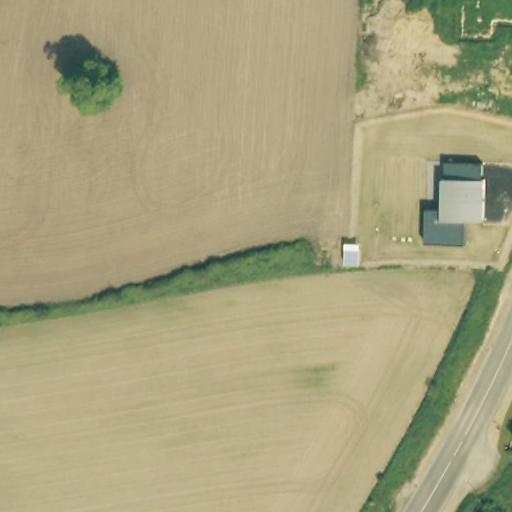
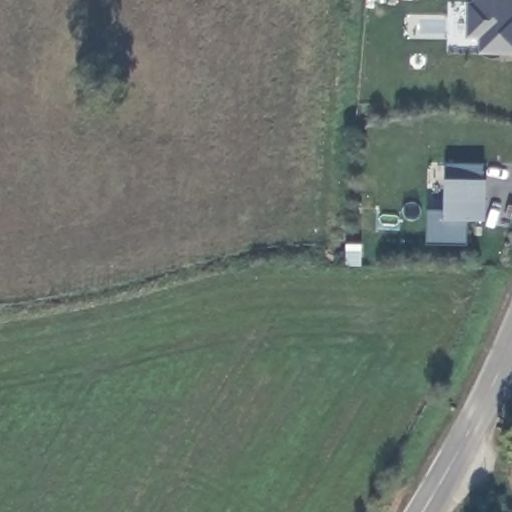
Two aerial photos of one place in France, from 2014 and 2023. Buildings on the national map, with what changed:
new [(512,51),(479,50),(478,37),(466,37),(467,1),(471,0),(512,0),(512,51)]
unchanged [(445,162),(483,163),(482,180),(486,180),(485,222),(468,221),(467,245),(426,245),(427,209),(443,209),(444,179),(445,162)]

